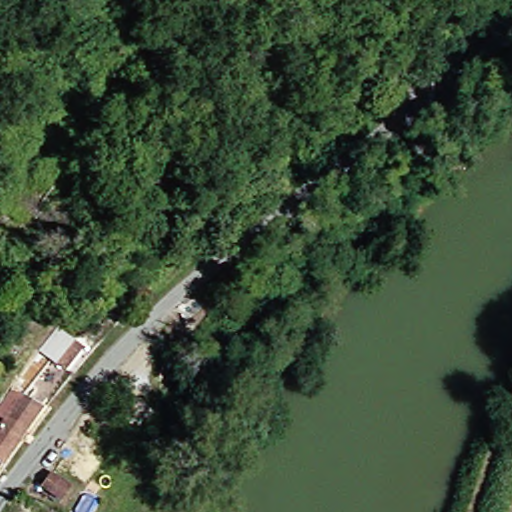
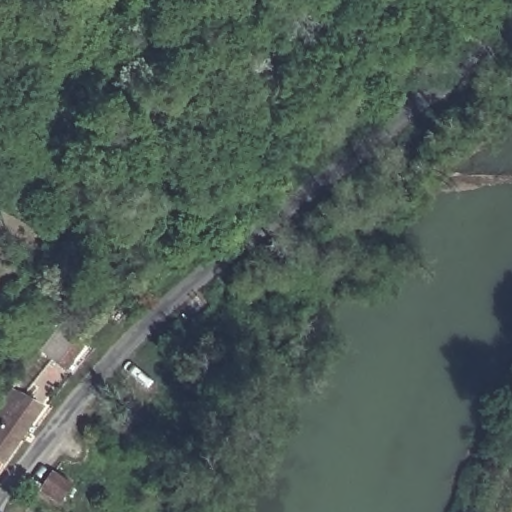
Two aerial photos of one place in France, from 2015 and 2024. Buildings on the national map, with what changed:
unchanged [(65,367),(50,357),(66,334),(81,344),(65,367)]
unchanged [(0,452),(0,418),(20,389),(36,400),(0,452)]
unchanged [(72,487),(63,501),(41,487),(51,473),(72,487)]

